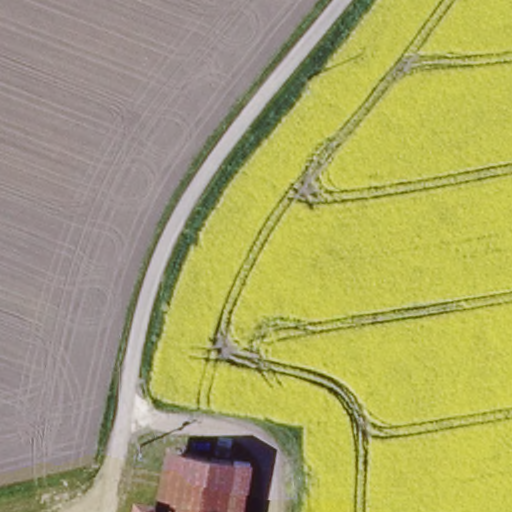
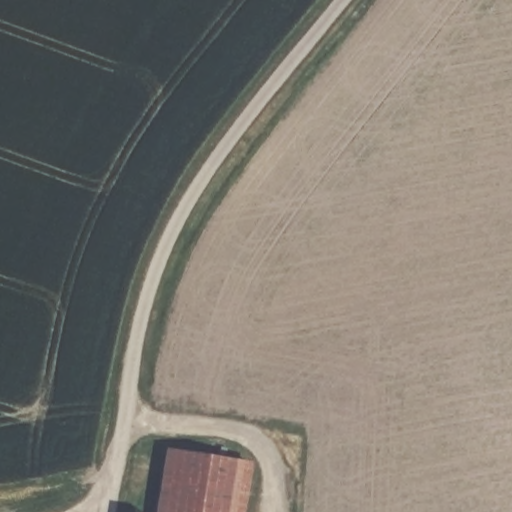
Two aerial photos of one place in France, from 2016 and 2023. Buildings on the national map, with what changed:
unchanged [(252,512),(163,512),(168,448),(259,462),(252,512)]

